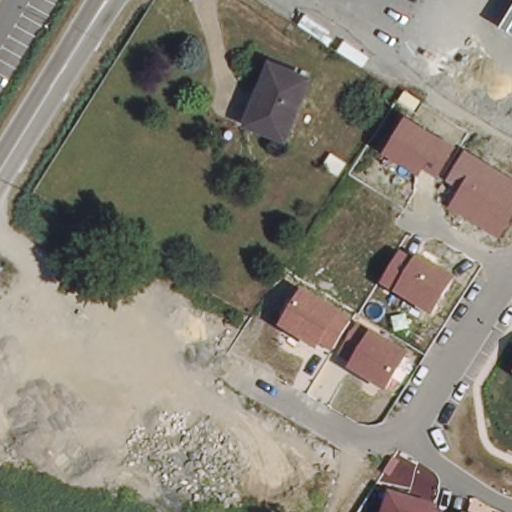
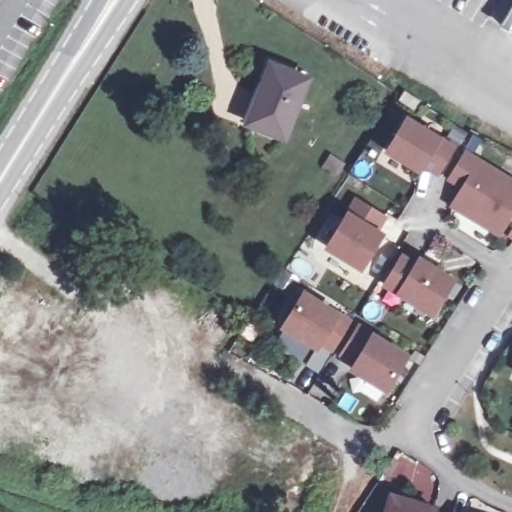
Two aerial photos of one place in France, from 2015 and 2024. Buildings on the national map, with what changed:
unchanged [(499,25),(512,6),(512,33),(499,25)]
unchanged [(307,79),(285,136),(249,120),(271,64),(307,79)]
unchanged [(437,175),(424,167),(420,173),(383,151),(406,115),(456,144),(437,175)]
unchanged [(499,237),(449,206),(459,189),(445,181),(464,148),(512,177),(512,215),(499,237)]
new [(346,209),(353,195),(388,216),(380,229),(386,232),(361,272),(323,249),(346,209)]
unchanged [(416,260),(419,254),(457,278),(433,317),(381,286),(402,252),(416,260)]
unchanged [(339,310),(351,319),(332,350),(322,345),(318,351),(280,327),(306,290),(339,310)]
unchanged [(387,393),(348,370),(349,366),(338,358),(358,325),(373,333),(411,355),(387,393)]
unchanged [(439,506),(437,512),(383,512),(389,494),(439,506)]

